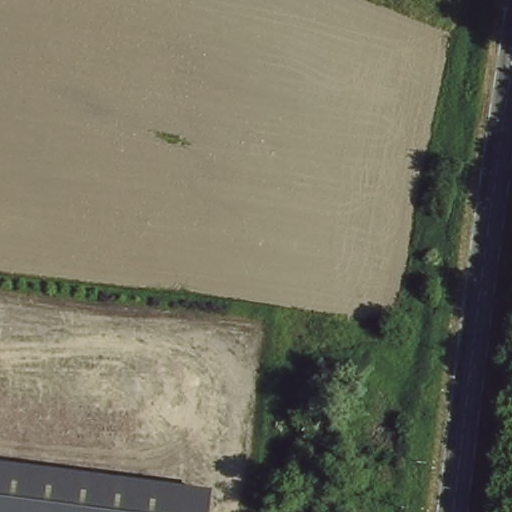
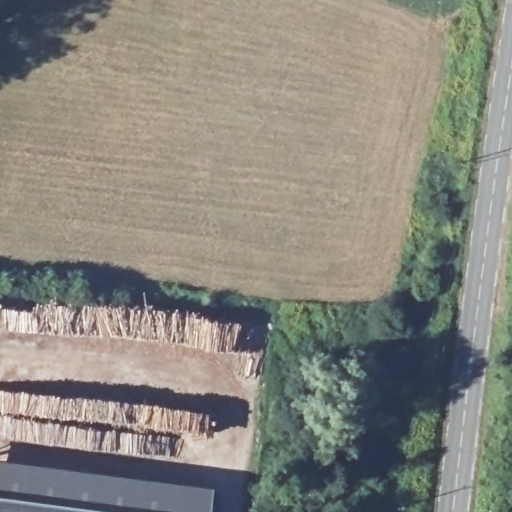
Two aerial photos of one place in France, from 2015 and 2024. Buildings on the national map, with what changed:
unchanged [(0,512),(0,461),(214,488),(211,512),(0,512)]

